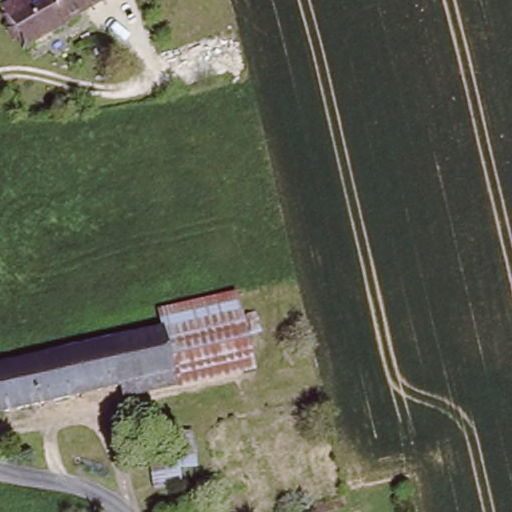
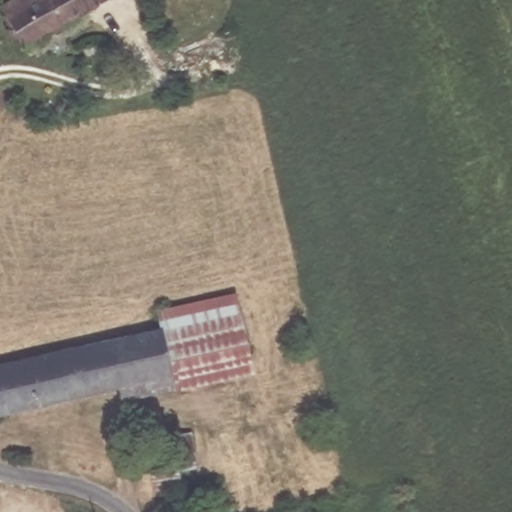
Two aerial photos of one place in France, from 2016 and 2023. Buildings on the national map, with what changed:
unchanged [(13,29),(2,11),(19,0),(81,0),(83,2),(76,7),(82,19),(28,53),(20,40),(13,44),(7,34),(13,29)]
unchanged [(88,10),(83,2),(81,0),(103,0),(88,10)]
unchanged [(176,391),(162,332),(158,313),(239,299),(253,376),(176,391)]
unchanged [(176,391),(122,402),(118,386),(110,344),(162,332),(176,391)]
unchanged [(0,367),(110,344),(118,386),(0,412),(0,367)]
unchanged [(148,440),(191,435),(197,466),(181,472),(181,487),(151,493),(148,440)]

